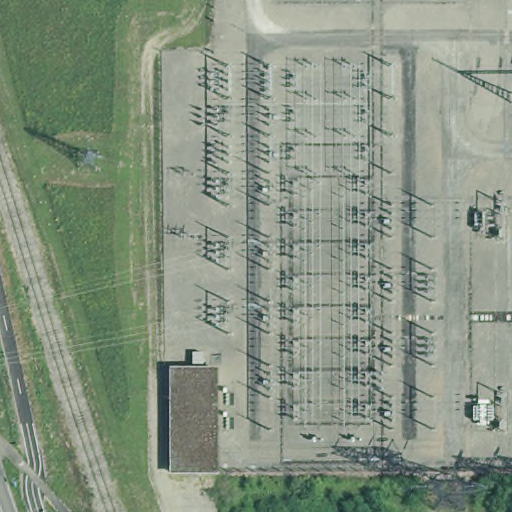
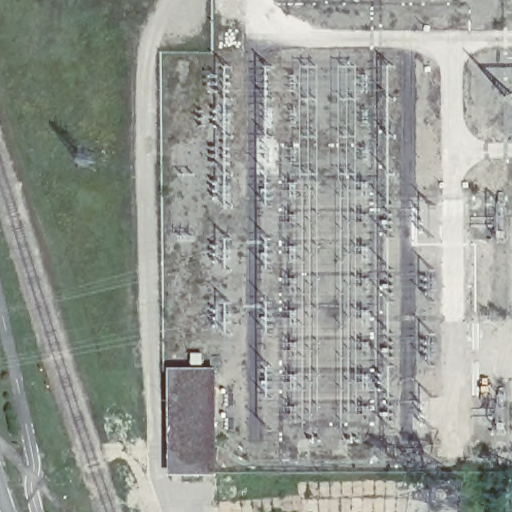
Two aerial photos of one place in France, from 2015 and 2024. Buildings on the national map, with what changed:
unchanged [(169,479),(171,374),(216,370),(213,479),(169,479)]

